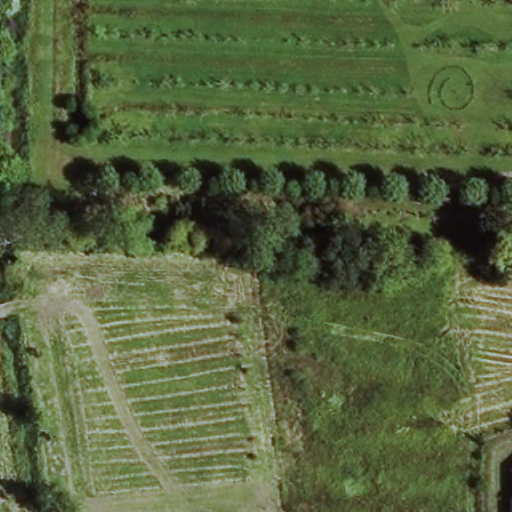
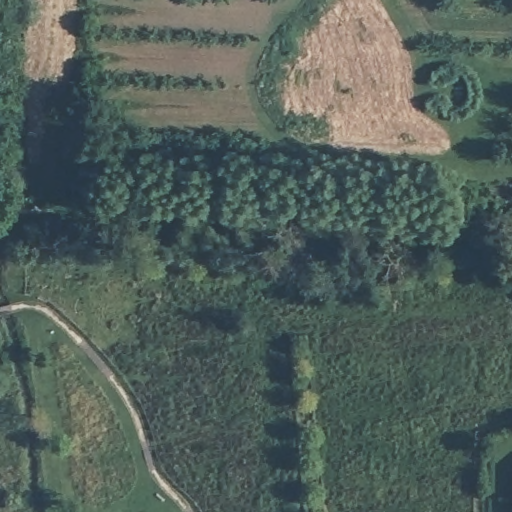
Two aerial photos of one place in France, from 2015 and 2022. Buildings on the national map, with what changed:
unchanged [(512,496),(512,512),(511,512),(511,496),(512,496)]

